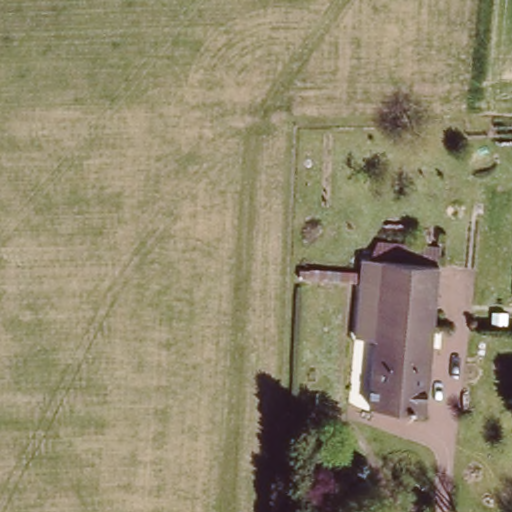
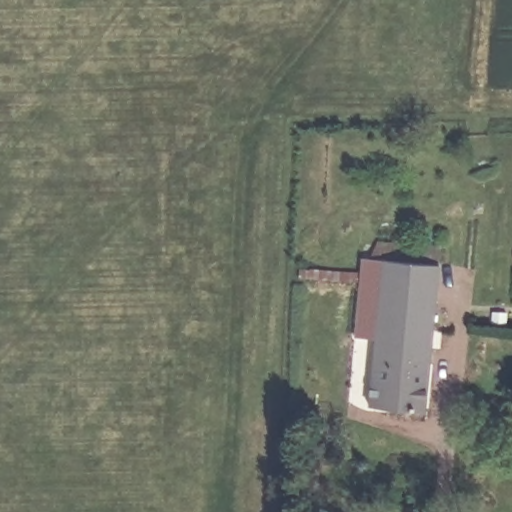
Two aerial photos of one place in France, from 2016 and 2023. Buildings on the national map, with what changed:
unchanged [(377,323),(357,321),(365,243),(451,251),(444,329),(431,328),(377,323)]
unchanged [(431,328),(423,410),(403,408),(405,394),(371,391),(377,323),(431,328)]

